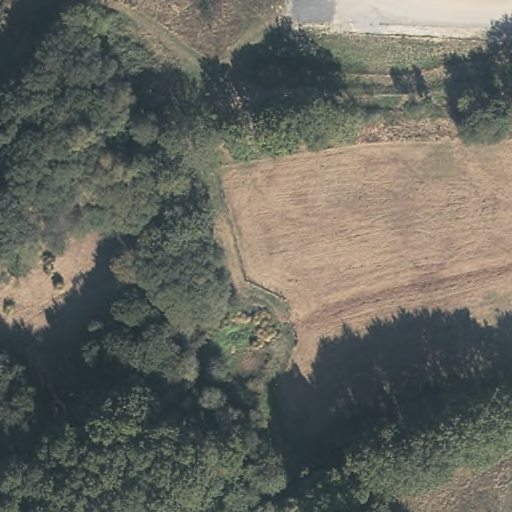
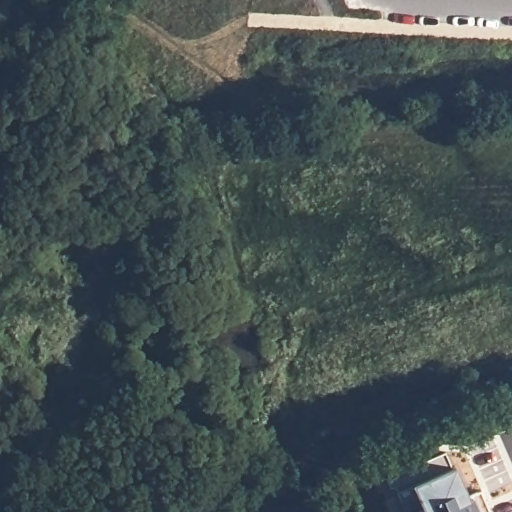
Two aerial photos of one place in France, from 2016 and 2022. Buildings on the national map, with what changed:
new [(397,488),(412,481),(456,462),(471,498),(465,502),(469,512),(400,512),(397,488)]

